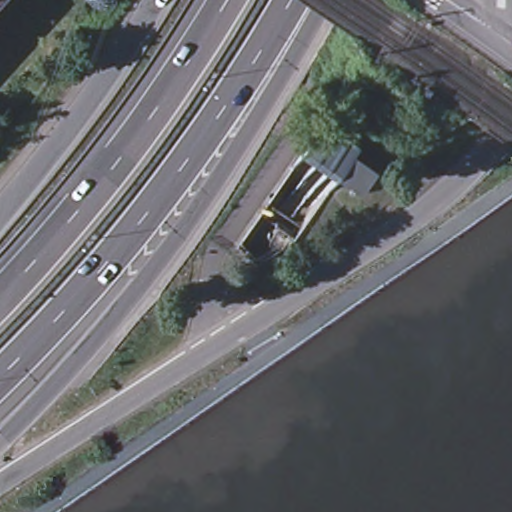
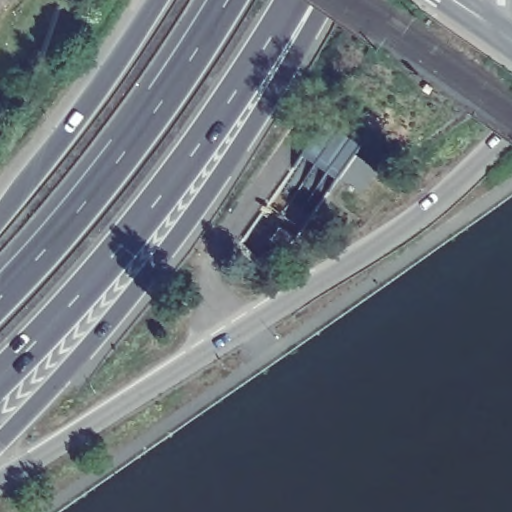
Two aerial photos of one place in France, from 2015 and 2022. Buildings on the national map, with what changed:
unchanged [(0,0),(1,0),(0,1),(0,0)]

